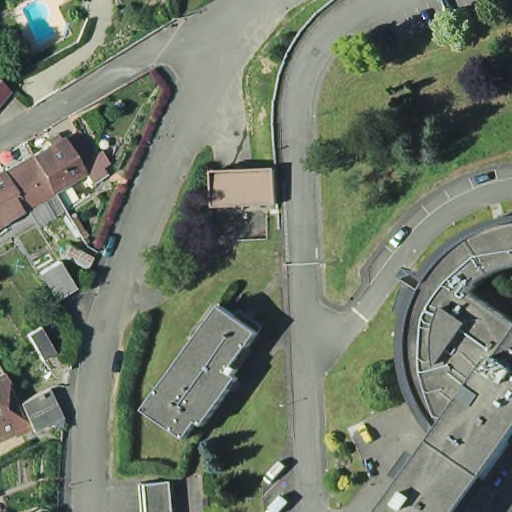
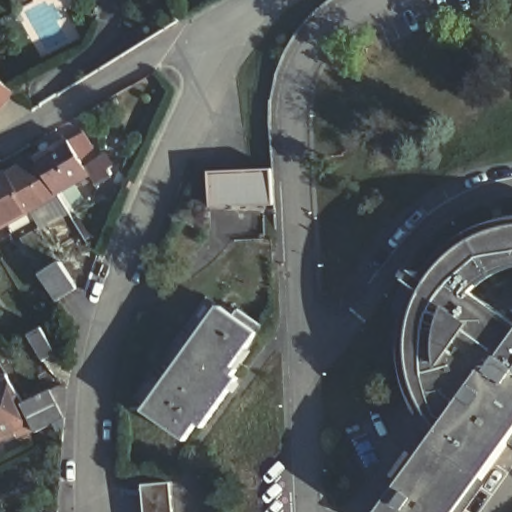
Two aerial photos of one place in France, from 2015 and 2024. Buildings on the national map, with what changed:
unchanged [(0,109),(0,83),(13,95),(0,109)]
unchanged [(64,141),(78,133),(91,155),(76,163),(78,167),(83,175),(54,191),(33,156),(63,139),(64,141)]
unchanged [(33,156),(54,191),(25,208),(20,200),(4,173),(33,156)]
unchanged [(85,180),(83,175),(78,167),(94,157),(111,185),(99,196),(68,215),(66,211),(58,197),(85,180)]
unchanged [(274,206),(211,209),(211,174),(273,171),(274,206)]
unchanged [(20,200),(25,208),(0,223),(0,176),(4,173),(20,200)]
unchanged [(438,432),(423,418),(410,395),(404,367),(403,334),(409,305),(418,283),(427,268),(444,247),(465,231),(486,222),(505,217),(512,216),(512,263),(509,263),(489,275),(472,288),(512,324),(512,432),(454,512),(384,512),(381,511),(438,432)]
unchanged [(88,275),(67,261),(73,250),(95,265),(88,275)]
unchanged [(78,292),(79,292),(60,305),(44,278),(63,267),(78,292)]
unchanged [(219,310),(232,320),(238,312),(261,331),(228,376),(235,382),(200,430),(196,426),(184,442),(143,413),(219,310)]
unchanged [(45,362),(30,336),(43,328),(58,354),(45,362)]
unchanged [(28,425),(0,439),(0,376),(17,402),(28,425)]
unchanged [(59,417),(30,431),(28,425),(17,402),(18,402),(46,390),(59,417)]
unchanged [(169,486),(172,512),(144,512),(142,488),(169,486)]

